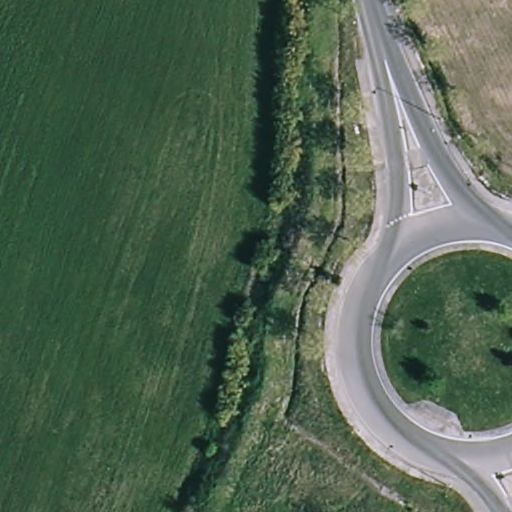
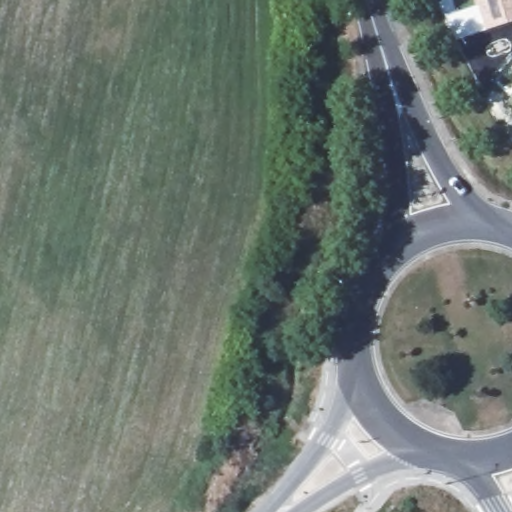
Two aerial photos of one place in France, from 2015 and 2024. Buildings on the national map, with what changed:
new [(478,0),(512,0),(512,22),(487,29),(478,0)]

